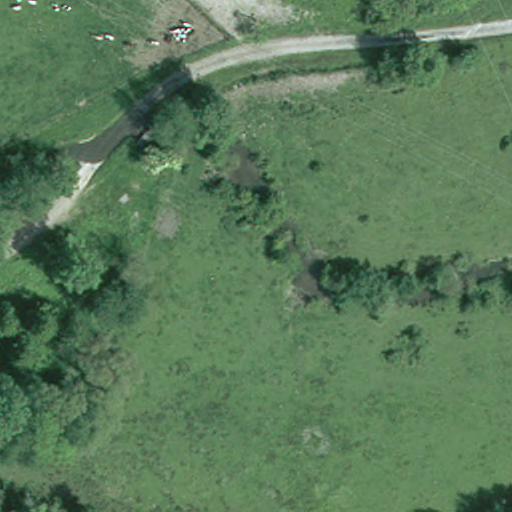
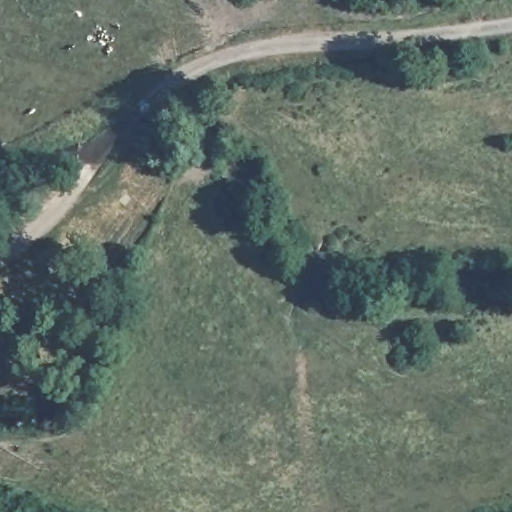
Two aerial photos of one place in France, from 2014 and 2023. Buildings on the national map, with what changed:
[]

